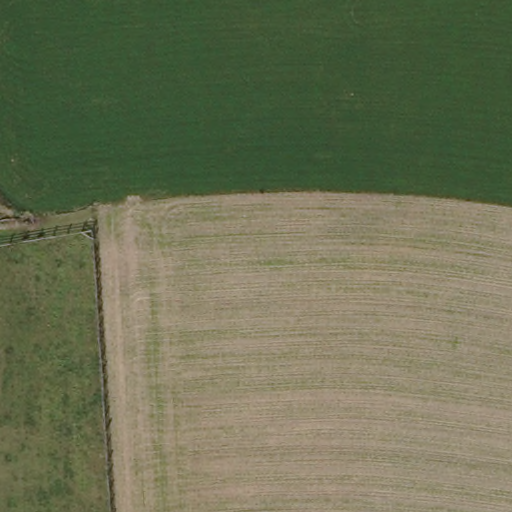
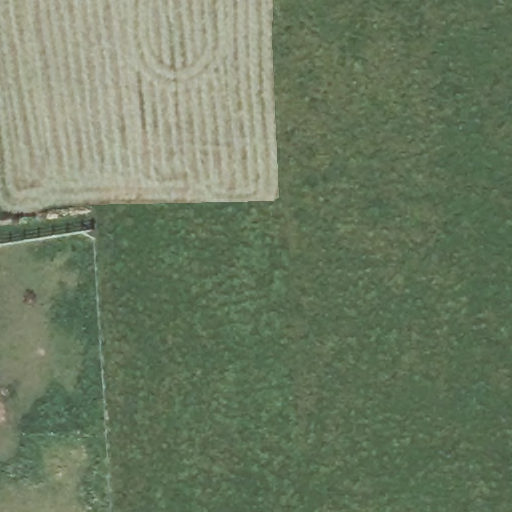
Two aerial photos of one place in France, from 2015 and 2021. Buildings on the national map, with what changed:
[]

